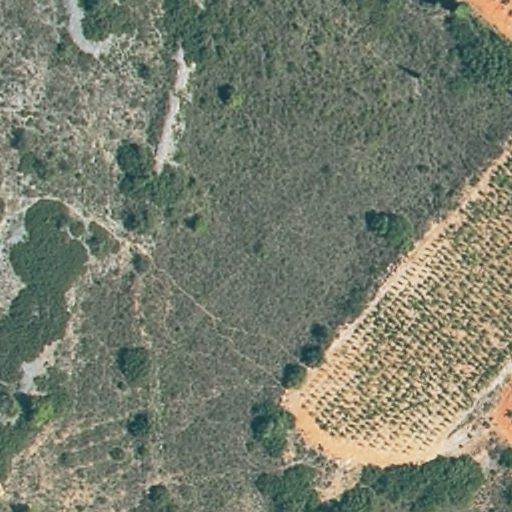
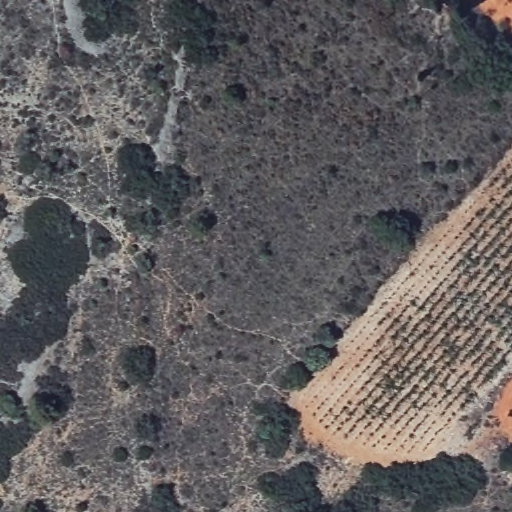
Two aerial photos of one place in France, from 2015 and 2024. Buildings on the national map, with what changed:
[]

